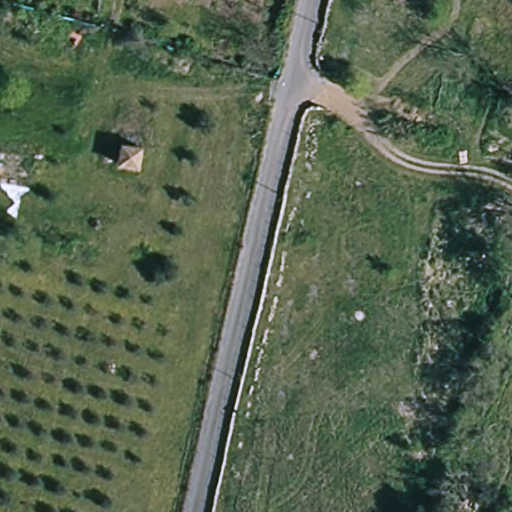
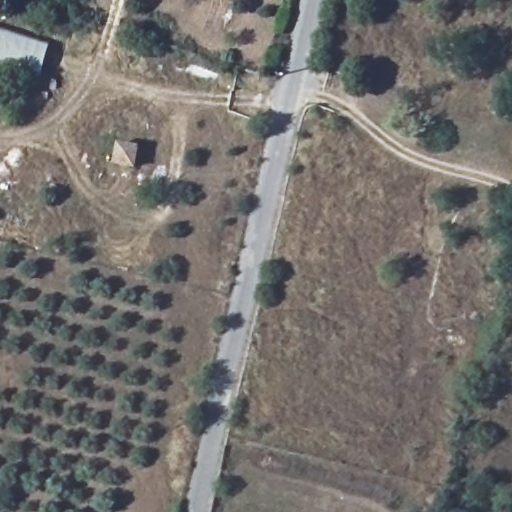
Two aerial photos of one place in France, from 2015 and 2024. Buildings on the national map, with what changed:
new [(42,77),(0,64),(0,32),(50,47),(42,77)]
unchanged [(116,146),(137,152),(132,173),(111,167),(116,146)]

